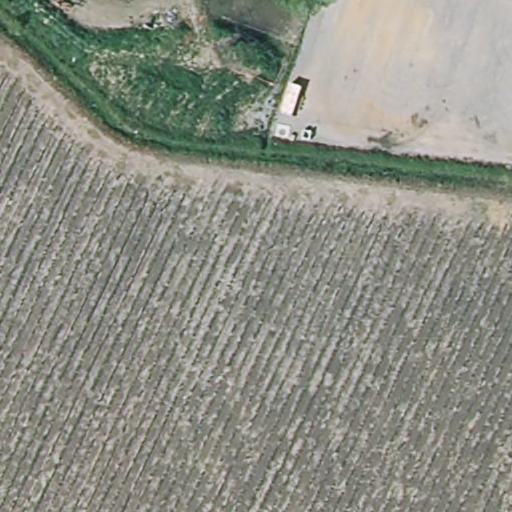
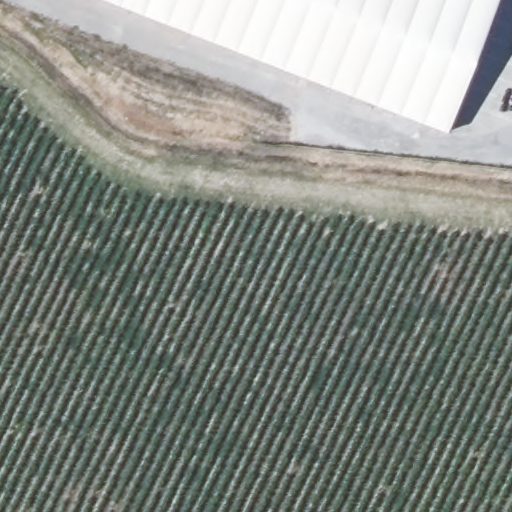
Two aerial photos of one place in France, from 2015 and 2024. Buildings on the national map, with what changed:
new [(109,0),(496,0),(443,134),(109,0)]
new [(465,104),(503,0),(512,0),(512,117),(510,121),(465,104)]

